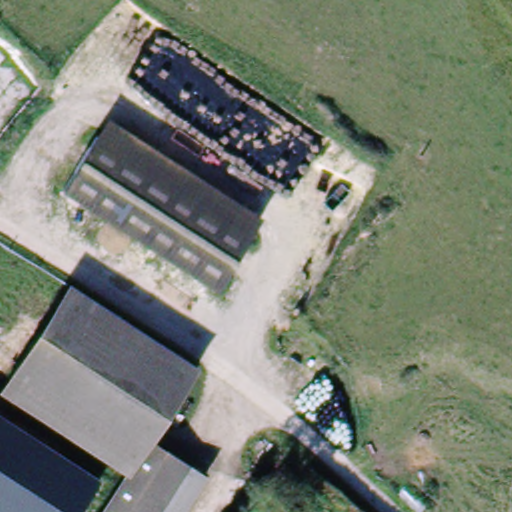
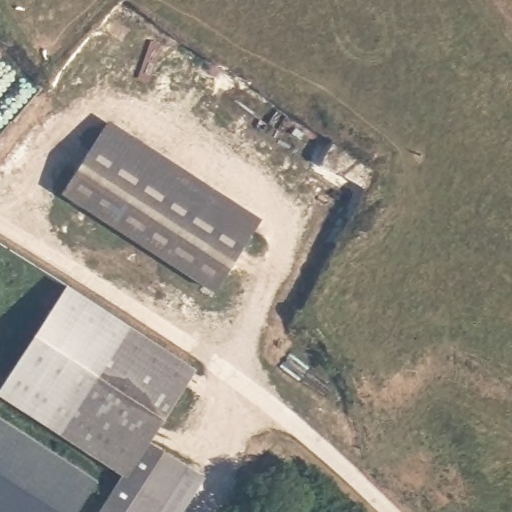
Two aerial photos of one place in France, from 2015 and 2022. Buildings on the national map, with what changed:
unchanged [(259,222),(212,293),(61,194),(108,122),(259,222)]
unchanged [(70,282),(199,367),(150,442),(205,477),(182,512),(99,512),(121,476),(0,397),(0,389),(70,282)]
unchanged [(97,481),(76,512),(0,512),(0,415),(97,481)]

